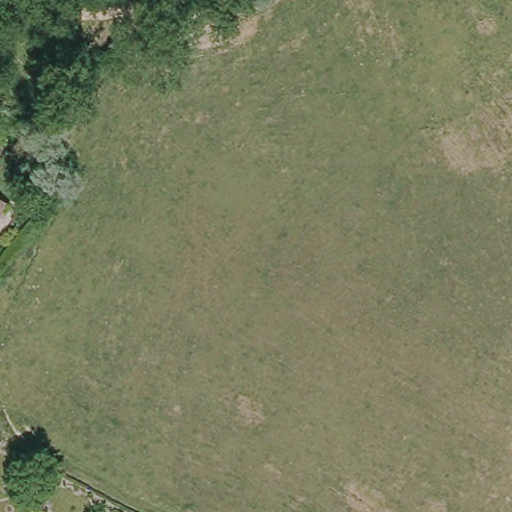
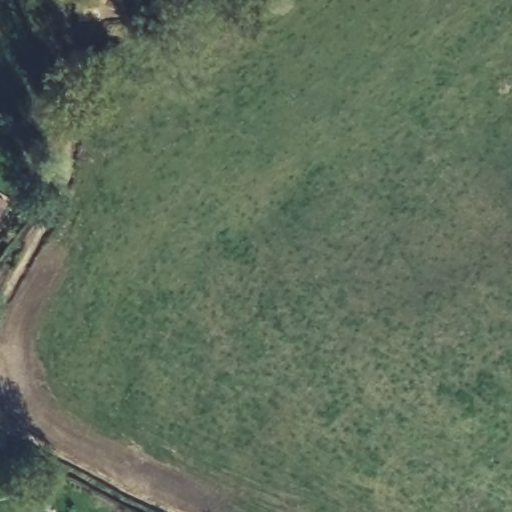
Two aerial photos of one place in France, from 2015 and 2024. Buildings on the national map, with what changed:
unchanged [(0,218),(0,200),(7,205),(0,218)]

